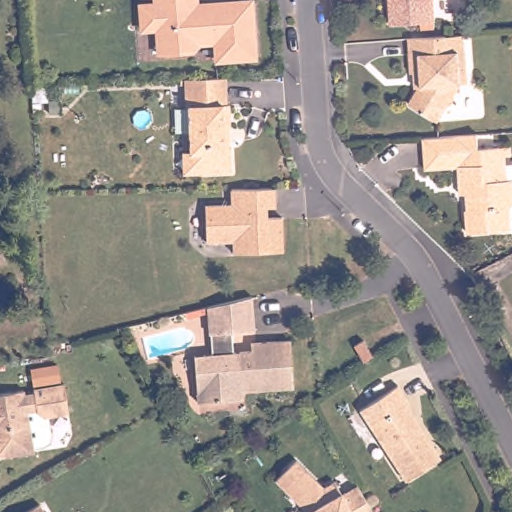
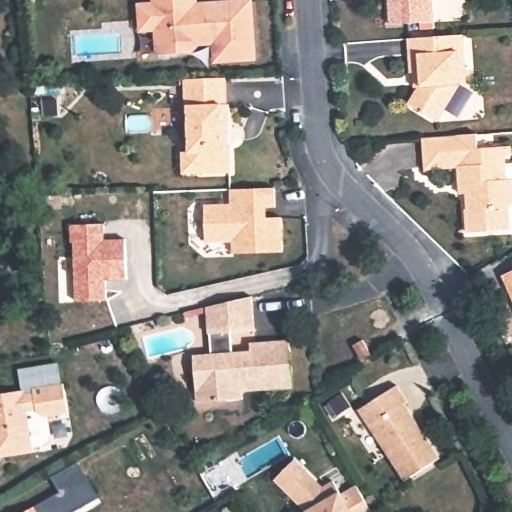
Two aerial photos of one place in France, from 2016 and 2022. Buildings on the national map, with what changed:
unchanged [(194,10),(199,10),(210,9),(214,5),(249,4),(250,60),(213,61),(212,43),(201,43),(195,44),(186,54),(156,55),(155,29),(140,29),(139,6),(154,5),(154,0),(194,0),(194,10)]
unchanged [(433,17),(390,20),(389,0),(432,0),(433,17)]
unchanged [(463,30),(467,79),(461,79),(438,116),(408,97),(415,85),(421,76),(420,66),(414,66),(409,66),(407,33),(463,30)]
unchanged [(182,154),(189,153),(187,107),(184,107),(184,80),(203,79),(224,78),(225,105),(228,105),(228,129),(221,129),(222,148),(229,148),(230,172),(209,173),(200,174),(183,174),(182,154)]
unchanged [(488,137),(489,151),(496,151),(496,166),(497,182),(503,182),(510,181),(511,203),(506,210),(507,232),(464,235),(462,212),(465,212),(463,186),(455,186),(454,170),(422,172),(420,141),(474,138),(488,137)]
unchanged [(253,208),(253,219),(279,218),(280,252),(230,254),(230,242),(214,242),(203,243),(202,206),(212,205),(229,205),(228,190),(235,190),(272,188),(272,207),(253,208)]
new [(103,224),(103,240),(124,239),(126,279),(105,280),(106,300),(75,301),(73,242),(70,242),(69,225),(103,224)]
unchanged [(217,306),(227,304),(250,298),(253,333),(230,335),(232,355),(250,354),(249,346),(289,343),(292,390),(241,394),(242,401),(196,405),(194,373),(201,373),(200,357),(210,357),(209,336),(208,336),(206,309),(217,306)]
unchanged [(353,345),(362,340),(371,356),(362,361),(353,345)]
unchanged [(41,446),(32,447),(32,453),(1,458),(0,457),(0,395),(22,391),(23,395),(33,394),(32,389),(62,384),(67,413),(47,416),(50,434),(49,442),(41,446)]
unchanged [(396,386),(406,402),(403,404),(438,459),(404,481),(358,410),(396,386)]
unchanged [(296,461),(333,497),(340,493),(341,495),(357,486),(372,512),(291,512),(296,502),(276,482),(296,461)]
unchanged [(43,512),(26,512),(38,505),(43,512)]

